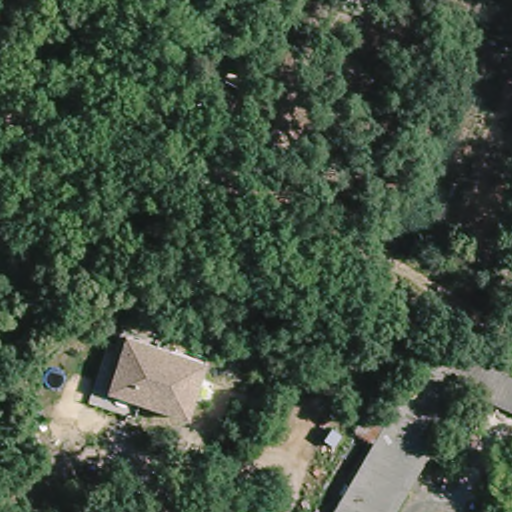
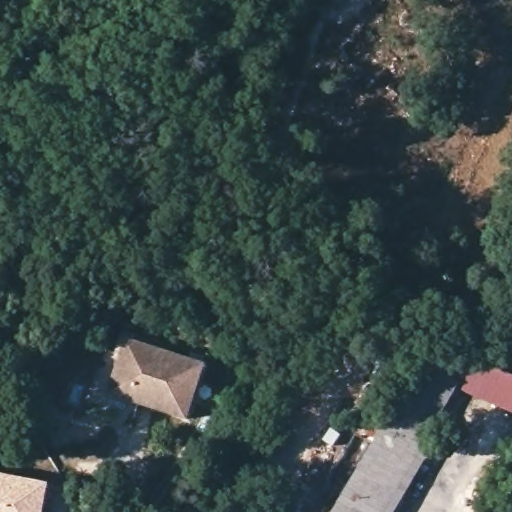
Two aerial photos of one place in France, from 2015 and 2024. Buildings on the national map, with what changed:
unchanged [(133,424),(87,411),(103,356),(112,358),(118,335),(155,346),(154,352),(122,343),(106,399),(137,408),(133,424)]
unchanged [(154,352),(202,366),(186,422),(137,408),(106,399),(122,343),(154,352)]
unchanged [(464,393),(395,512),(345,512),(415,392),(426,397),(455,349),(512,375),(512,414),(464,393)]
new [(42,512),(0,512),(0,472),(48,482),(42,512)]

